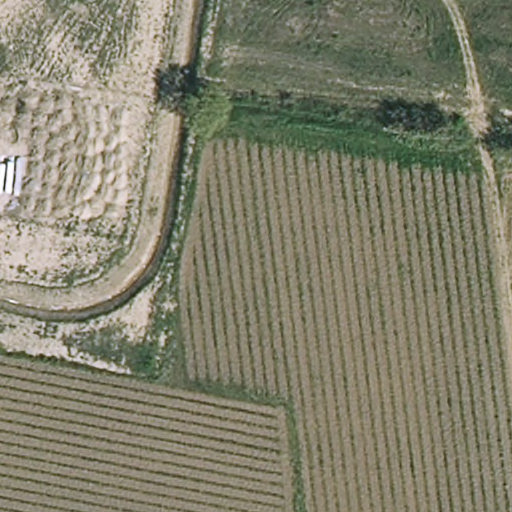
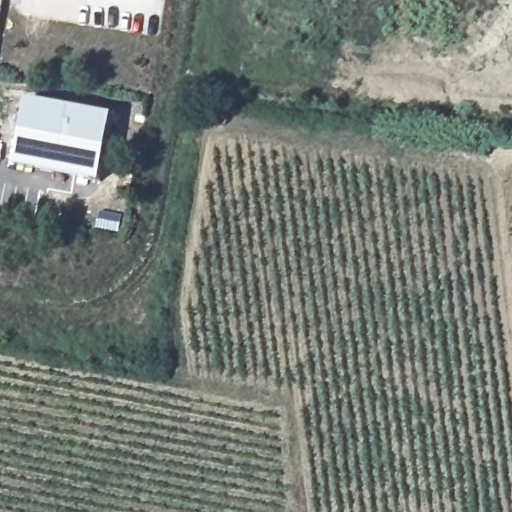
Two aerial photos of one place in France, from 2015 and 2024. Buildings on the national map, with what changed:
new [(0,26),(0,0),(5,0),(0,26)]
new [(115,114),(102,182),(18,167),(29,100),(115,114)]
new [(0,160),(0,145),(4,145),(1,160),(0,160)]

